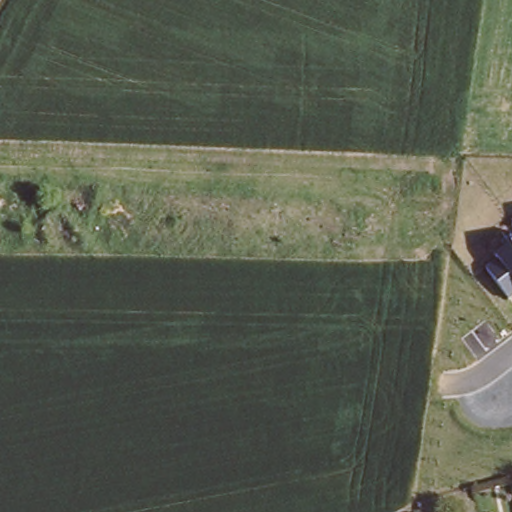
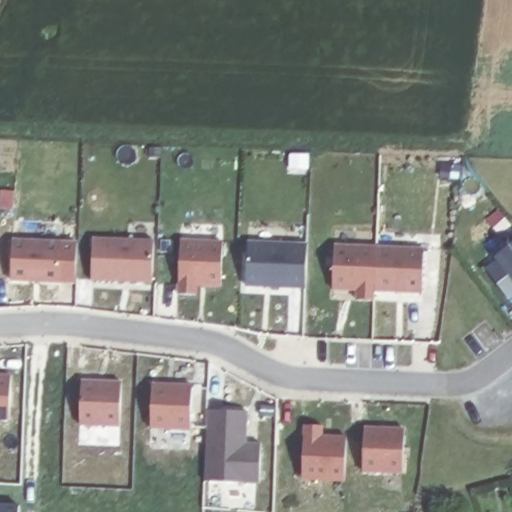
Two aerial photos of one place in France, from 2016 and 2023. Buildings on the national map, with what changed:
new [(155,241),(151,284),(91,280),(95,238),(155,241)]
new [(63,241),(61,284),(11,280),(13,239),(63,241)]
new [(224,241),(221,288),(197,286),(197,295),(177,294),(180,239),(224,241)]
new [(307,244),(305,290),(246,287),(248,242),(307,244)]
unchanged [(512,243),(512,298),(507,301),(483,265),(512,243)]
new [(423,248),(422,294),(376,292),(375,301),(355,300),(356,292),(333,290),(335,244),(423,248)]
new [(11,374),(10,421),(0,421),(0,373),(11,374)]
new [(82,380),(121,382),(121,427),(81,426),(82,380)]
new [(153,382),(192,385),(190,430),(151,429),(153,382)]
new [(208,410),(248,412),(247,443),(261,444),(260,484),(205,482),(208,410)]
new [(305,425),(323,425),(325,436),(346,437),(345,482),(302,481),(305,425)]
new [(366,426),(405,428),(402,474),(362,472),(366,426)]
new [(20,505),(20,512),(0,512),(0,505),(20,505)]

